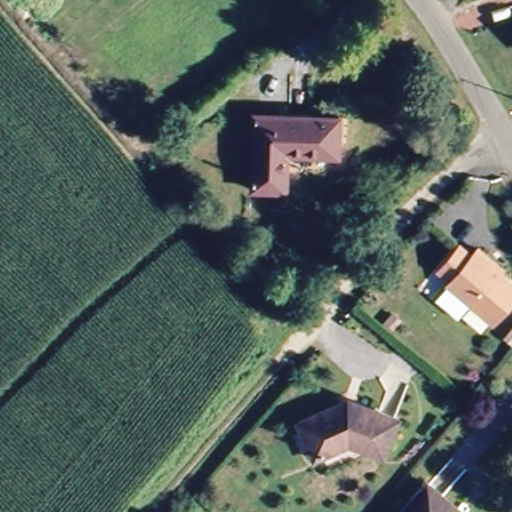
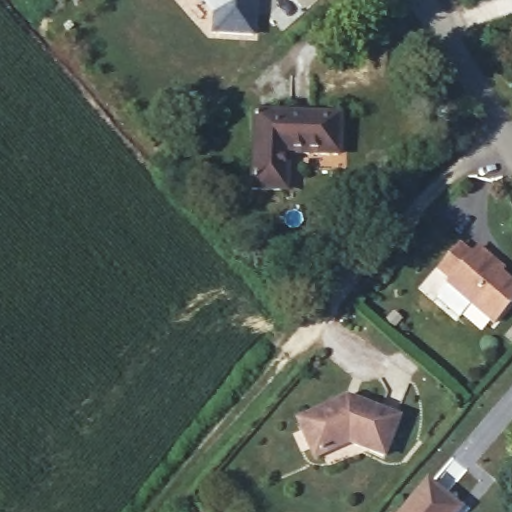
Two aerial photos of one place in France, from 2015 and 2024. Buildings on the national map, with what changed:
new [(256,1),(254,37),(211,35),(212,15),(199,0),(256,0),(256,1)]
new [(281,32),(266,17),(287,0),(319,0),(281,32)]
unchanged [(337,159),(291,159),(289,189),(253,187),(255,111),(339,114),(337,159)]
unchanged [(450,294),(453,288),(440,278),(461,252),(475,263),(483,254),(501,267),(495,277),(512,291),(512,310),(497,330),(474,312),(463,328),(439,308),(450,294)]
unchanged [(512,340),(511,341),(502,335),(512,323),(512,340)]
unchanged [(384,457),(350,443),(315,457),(300,421),(352,400),(400,422),(384,457)]
unchanged [(461,512),(401,512),(431,479),(448,496),(462,511),(461,512)]

